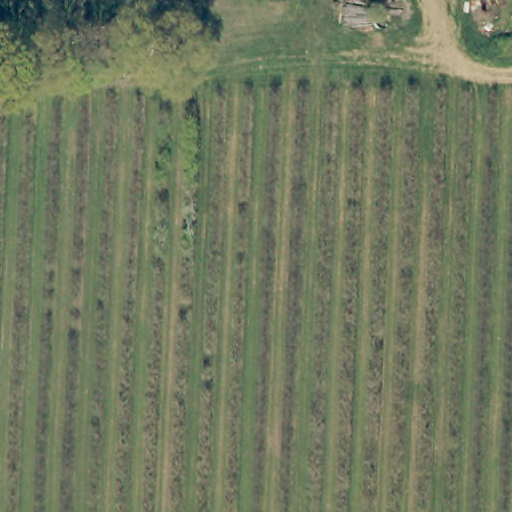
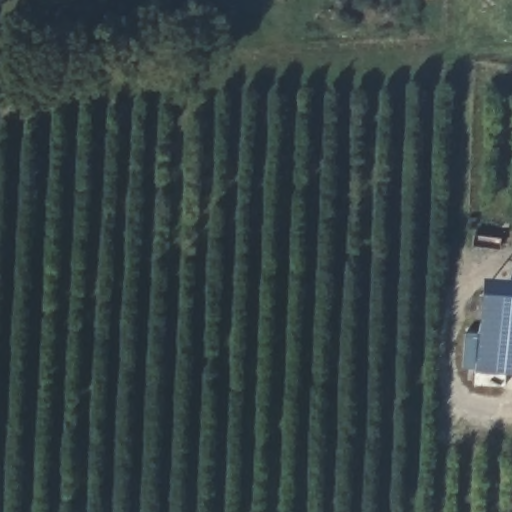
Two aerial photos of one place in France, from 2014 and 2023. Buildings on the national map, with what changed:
new [(463,368),(464,342),(476,342),(480,277),(512,279),(512,374),(476,371),(463,368)]

